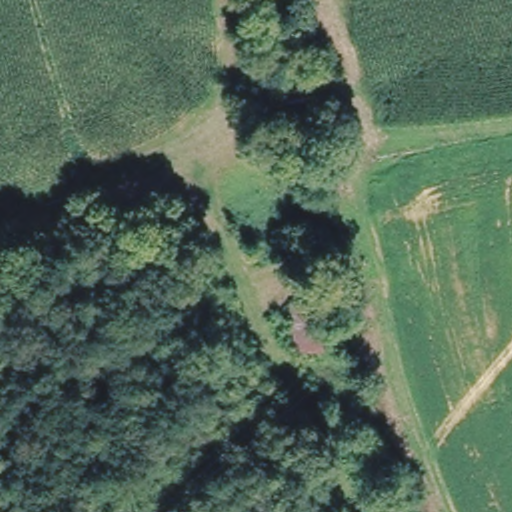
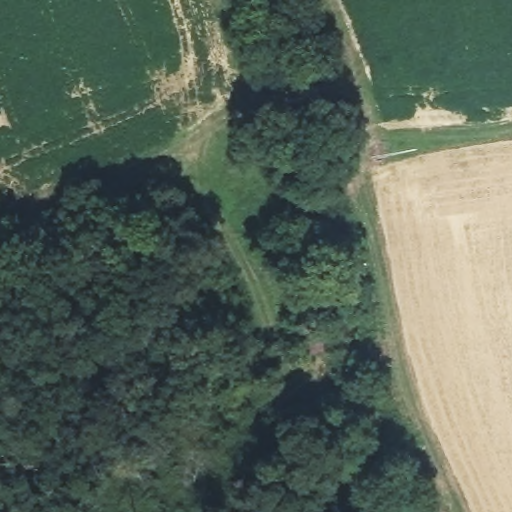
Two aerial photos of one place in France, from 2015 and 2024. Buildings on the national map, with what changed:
unchanged [(291,355),(286,277),(315,276),(322,351),(291,355)]

